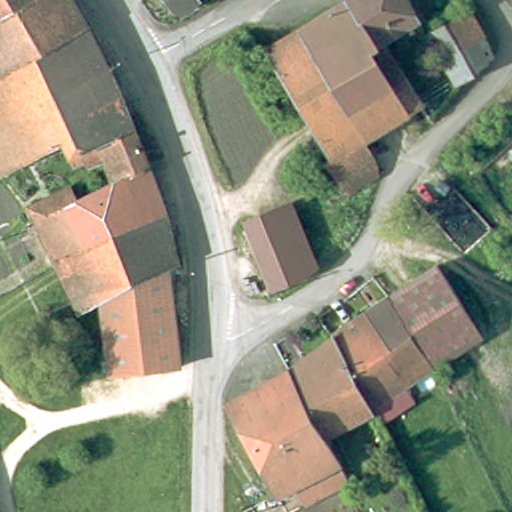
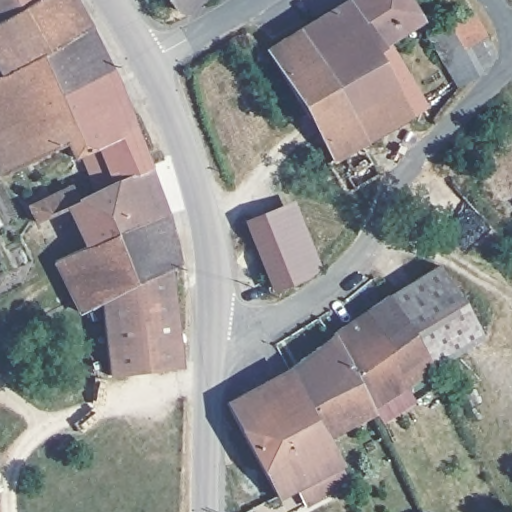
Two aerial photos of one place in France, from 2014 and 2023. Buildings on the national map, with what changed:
unchanged [(0,11),(0,0),(17,0),(0,11)]
unchanged [(17,0),(77,0),(84,16),(98,44),(110,74),(121,101),(66,132),(2,168),(0,165),(0,11),(17,0)]
unchanged [(193,5),(179,3),(176,0),(197,0),(193,5)]
unchanged [(415,8),(384,30),(424,93),(363,130),(383,163),(343,188),(321,153),(328,149),(264,40),(335,0),(409,0),(415,8)]
unchanged [(426,26),(458,7),(470,0),(474,0),(493,43),(458,73),(426,26)]
unchanged [(70,143),(66,132),(121,101),(144,157),(106,178),(92,147),(76,155),(70,143)]
unchanged [(144,157),(161,200),(172,255),(163,259),(165,263),(178,357),(108,367),(97,295),(83,301),(58,257),(79,245),(61,204),(52,208),(37,216),(29,202),(71,179),(78,193),(106,178),(144,157)]
unchanged [(319,269),(270,291),(242,218),(291,200),(319,269)]
unchanged [(372,400),(335,325),(438,262),(483,334),(372,400)]
unchanged [(330,435),(295,360),(335,325),(372,400),(378,411),(330,435)]
unchanged [(295,478),(276,488),(231,392),(295,360),(330,435),(339,454),(335,456),(345,476),(325,486),(306,498),(295,478)]

